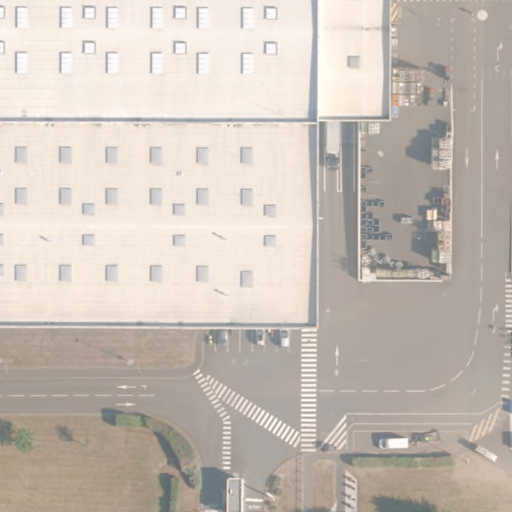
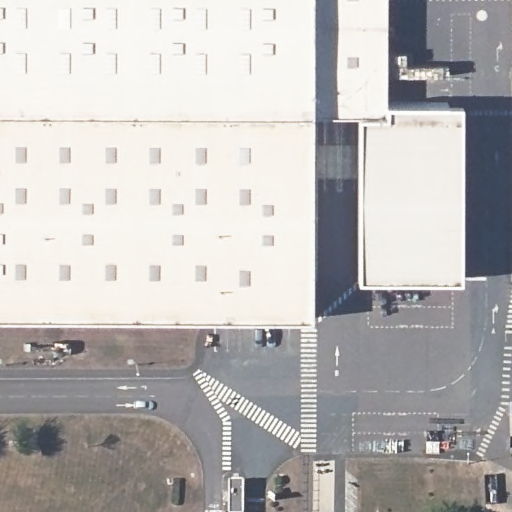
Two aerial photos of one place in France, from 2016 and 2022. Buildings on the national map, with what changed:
unchanged [(307,117),(304,317),(0,315),(0,0),(358,0),(358,117),(307,117)]
new [(387,0),(388,102),(464,102),(463,278),(358,278),(358,117),(358,0),(387,0)]

